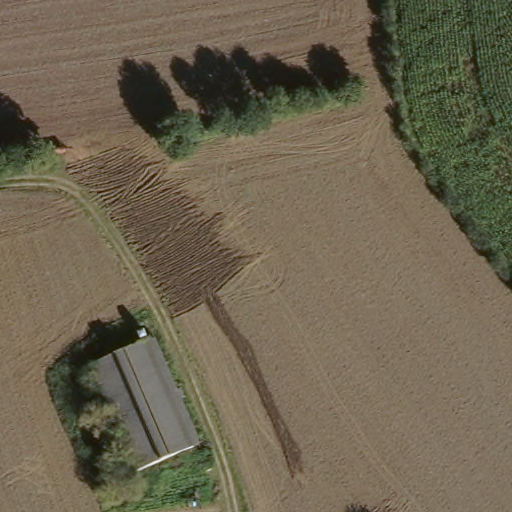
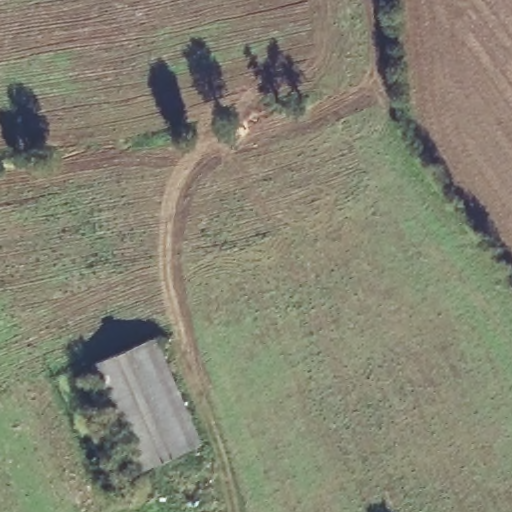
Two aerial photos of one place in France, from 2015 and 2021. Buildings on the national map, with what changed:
unchanged [(196,447),(139,472),(91,364),(149,339),(196,447)]

